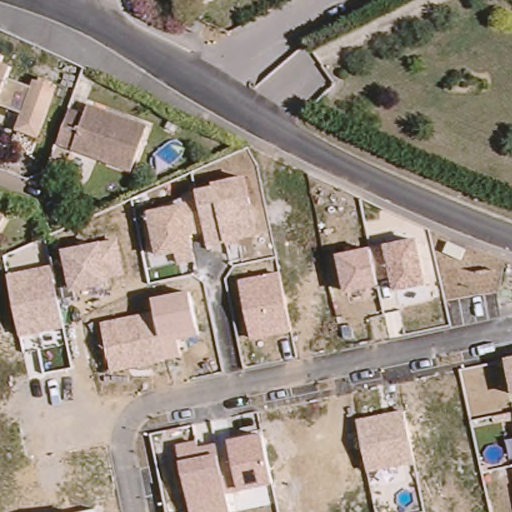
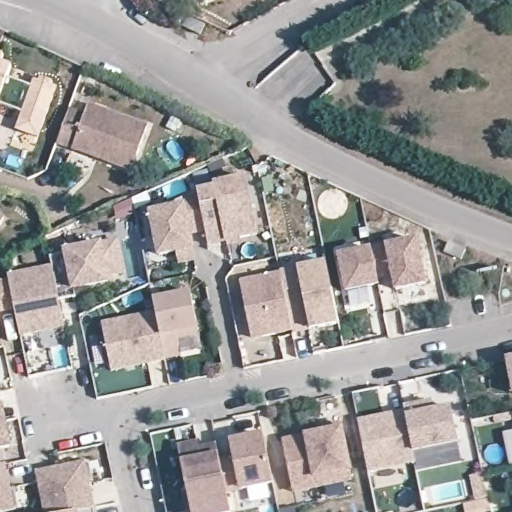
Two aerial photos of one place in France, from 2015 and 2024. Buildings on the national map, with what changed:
unchanged [(197,0),(203,0),(197,2),(197,0)]
unchanged [(200,36),(183,28),(188,17),(204,26),(200,36)]
unchanged [(15,131),(18,121),(19,119),(21,113),(7,109),(0,106),(0,55),(4,56),(2,64),(12,67),(7,78),(17,82),(30,87),(33,80),(37,82),(39,78),(52,83),(52,87),(57,89),(42,131),(38,140),(15,131)]
unchanged [(56,150),(69,115),(85,120),(88,111),(147,132),(132,177),(109,169),(72,155),(56,150)]
unchanged [(148,212),(186,205),(199,203),(196,190),(213,187),(212,184),(246,177),(252,205),(258,236),(228,244),(208,248),(205,234),(192,236),(195,249),(196,261),(179,265),(178,254),(157,258),(148,212)]
unchanged [(5,228),(0,236),(0,225),(5,228)]
unchanged [(337,256),(417,239),(427,285),(394,292),(393,284),(378,287),(345,294),(337,256)]
unchanged [(7,275),(52,267),(51,260),(65,258),(63,251),(102,244),(118,240),(125,275),(109,279),(110,284),(72,292),(72,298),(58,301),(62,328),(20,337),(7,275)]
unchanged [(241,281),(282,273),(293,331),(252,340),(241,281)]
new [(8,278),(15,310),(0,313),(0,280),(8,278)]
unchanged [(102,322),(154,312),(152,299),(191,291),(200,334),(178,338),(182,358),(112,370),(102,322)]
unchanged [(512,358),(512,394),(504,360),(512,358)]
new [(404,413),(403,406),(432,401),(434,410),(450,407),(458,444),(413,453),(404,413)]
unchanged [(357,422),(404,413),(415,462),(368,472),(357,422)]
new [(5,423),(10,446),(0,448),(0,424),(5,423)]
new [(303,435),(341,427),(350,474),(352,483),(292,494),(282,440),(303,435)]
unchanged [(198,441),(200,447),(217,444),(219,455),(231,453),(229,441),(264,434),(275,484),(241,491),(227,495),(231,512),(192,512),(186,487),(180,461),(178,446),(198,441)]
new [(97,510),(84,512),(42,512),(35,472),(87,461),(97,510)]
new [(15,510),(3,512),(0,512),(0,465),(5,464),(15,510)]
unchanged [(98,512),(84,512),(98,510),(98,512)]

